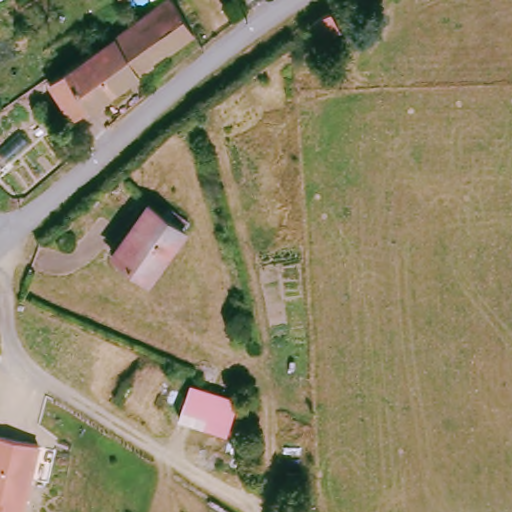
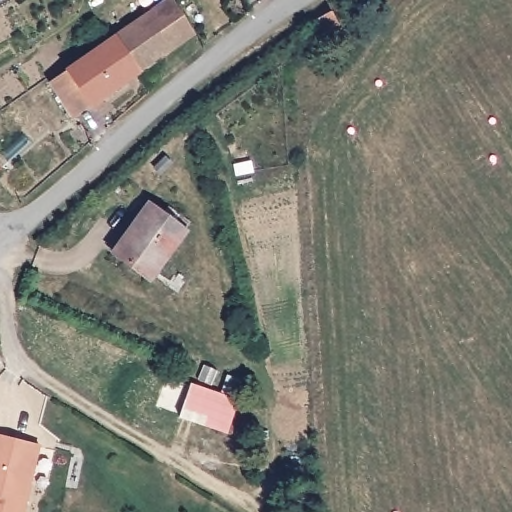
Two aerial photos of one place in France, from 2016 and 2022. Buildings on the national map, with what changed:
unchanged [(52,75),(157,0),(177,0),(196,29),(76,109),(52,75)]
unchanged [(341,29),(322,40),(312,23),(331,11),(341,29)]
unchanged [(145,275),(109,250),(143,201),(179,226),(145,275)]
unchanged [(189,383),(235,400),(223,430),(177,414),(189,383)]
unchanged [(40,437),(23,512),(0,512),(0,428),(40,437)]

